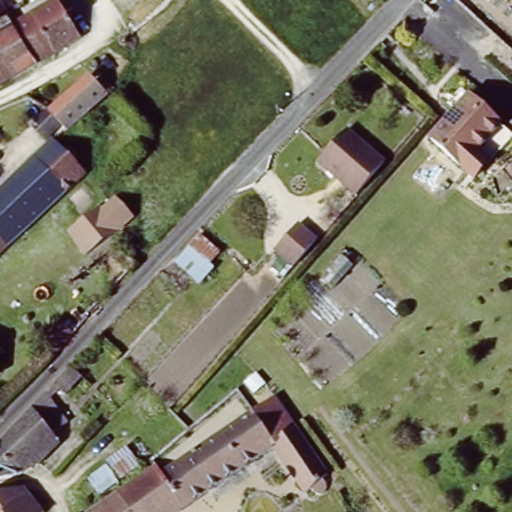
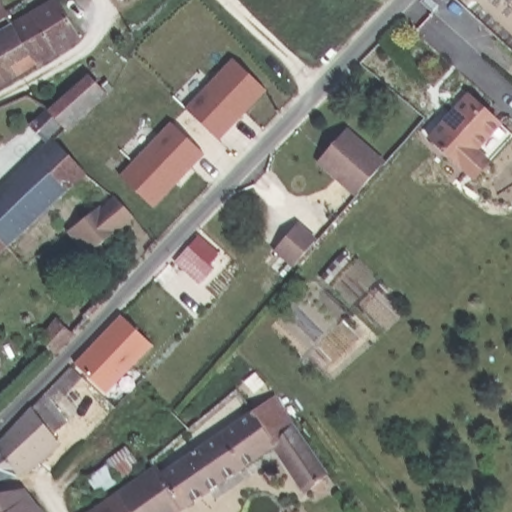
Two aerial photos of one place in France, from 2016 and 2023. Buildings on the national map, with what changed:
unchanged [(10,23),(33,62),(0,83),(0,28),(5,25),(0,19),(0,0),(6,0),(17,19),(10,23)]
unchanged [(86,31),(33,62),(10,23),(17,19),(50,0),(66,0),(86,31)]
new [(234,61),(267,93),(219,143),(186,111),(234,61)]
unchanged [(87,70),(106,90),(67,129),(62,123),(44,140),(27,123),(45,106),(47,107),(87,70)]
unchanged [(475,180),(469,174),(432,140),(452,112),(453,113),(454,114),(469,97),(500,125),(489,141),(487,140),(485,138),(477,152),(482,158),(488,164),(475,180)]
new [(172,124),(204,155),(156,209),(120,176),(172,124)]
unchanged [(347,134),(384,167),(357,198),(357,199),(319,166),(347,134)]
unchanged [(24,230),(0,254),(0,190),(52,139),(55,141),(85,172),(78,178),(24,230)]
unchanged [(68,230),(97,205),(105,205),(115,197),(133,216),(115,235),(102,242),(87,250),(68,230)]
unchanged [(295,228),(313,244),(290,270),(272,254),(295,228)]
unchanged [(197,237),(214,254),(205,263),(210,266),(195,283),(173,262),(197,237)]
unchanged [(67,310),(72,315),(84,302),(89,307),(77,320),(80,323),(47,358),(45,355),(34,345),(37,342),(67,310)]
new [(120,315),(151,345),(107,393),(74,363),(120,315)]
unchanged [(0,346),(0,336),(4,343),(0,346)]
unchanged [(58,433),(42,445),(45,447),(24,472),(20,475),(4,481),(0,483),(0,436),(32,399),(58,433)]
unchanged [(331,476),(325,481),(325,482),(327,485),(327,488),(326,492),(322,495),(320,495),(317,495),(314,493),(312,491),(307,494),(273,448),(183,512),(135,512),(122,492),(158,467),(165,476),(192,459),(259,413),(276,400),(331,476)]
unchanged [(123,482),(85,510),(72,493),(110,465),(123,482)]
unchanged [(33,512),(0,512),(0,495),(20,492),(33,512)]
unchanged [(135,512),(93,512),(122,492),(135,512)]

